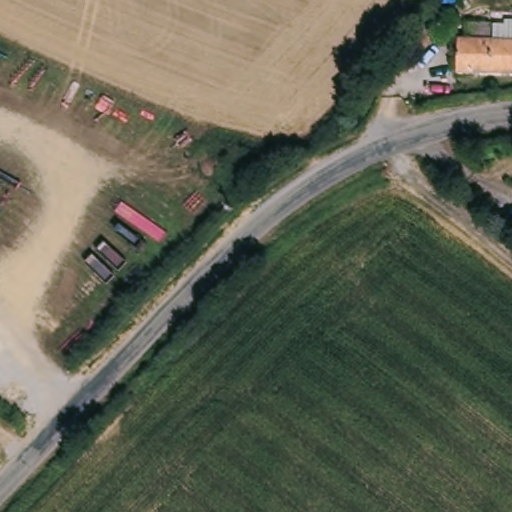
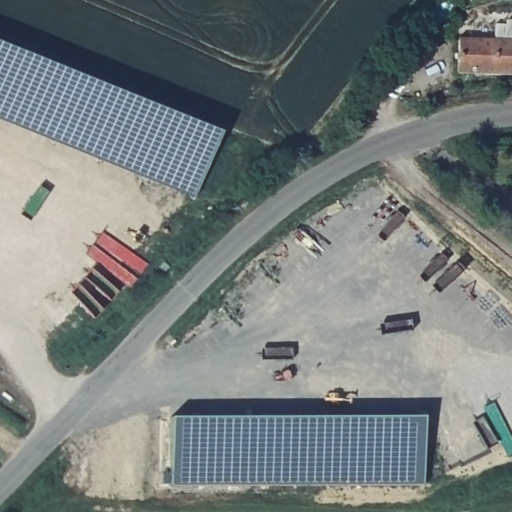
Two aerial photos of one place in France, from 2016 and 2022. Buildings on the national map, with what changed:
unchanged [(493,27),(510,27),(510,21),(512,21),(512,75),(462,74),(463,38),(492,39),(493,27)]
new [(218,131),(190,196),(0,120),(0,43),(218,131)]
new [(172,483),(169,415),(430,415),(430,486),(172,483)]

